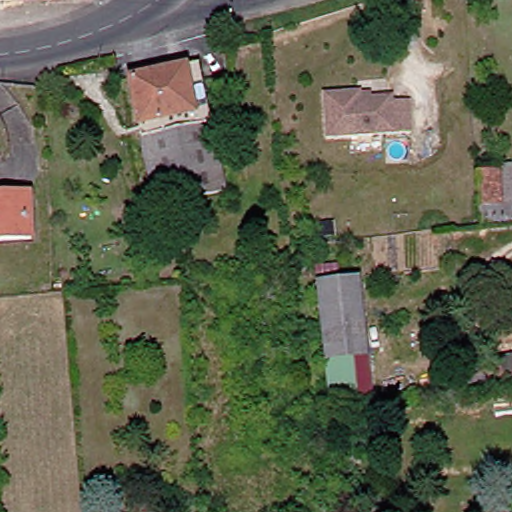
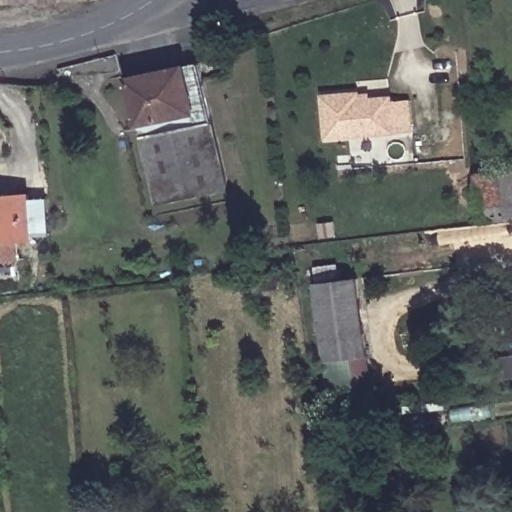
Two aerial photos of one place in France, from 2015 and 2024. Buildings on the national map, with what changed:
unchanged [(7,0),(107,0),(8,5),(7,0)]
unchanged [(196,70),(207,114),(146,126),(135,79),(196,70)]
unchanged [(333,139),(330,96),(366,94),(366,100),(398,98),(398,103),(415,102),(417,132),(333,139)]
unchanged [(159,203),(149,138),(219,125),(234,191),(159,203)]
unchanged [(484,182),(506,180),(512,179),(512,211),(509,211),(509,212),(487,214),(484,182)]
unchanged [(5,196),(39,194),(42,237),(0,240),(0,203),(5,202),(5,196)]
unchanged [(347,402),(338,403),(324,286),(365,281),(378,399),(347,402)]
unchanged [(504,376),(502,356),(512,355),(512,375),(504,376)]

